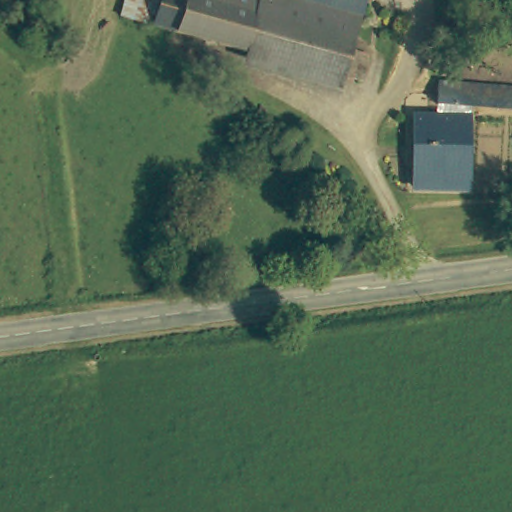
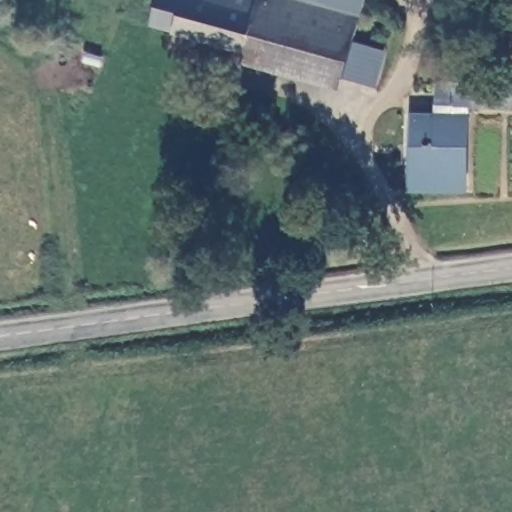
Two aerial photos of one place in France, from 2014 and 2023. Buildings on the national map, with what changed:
unchanged [(149,25),(158,0),(366,0),(362,18),(351,54),(344,78),(343,82),(149,25)]
new [(377,87),(344,78),(351,54),(355,40),(387,50),(377,87)]
unchanged [(448,108),(450,88),(512,94),(512,115),(481,111),(448,108)]
unchanged [(409,116),(465,117),(462,189),(408,186),(409,116)]

